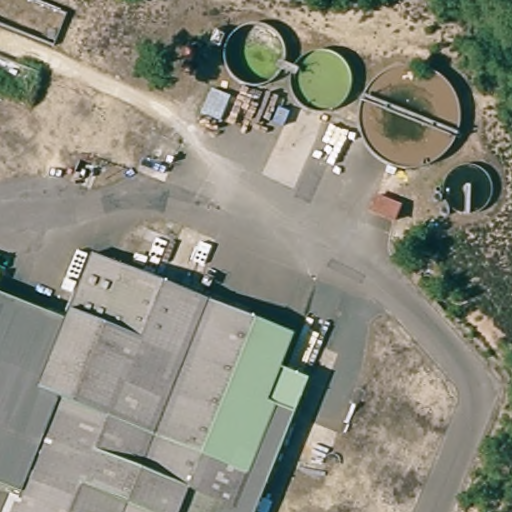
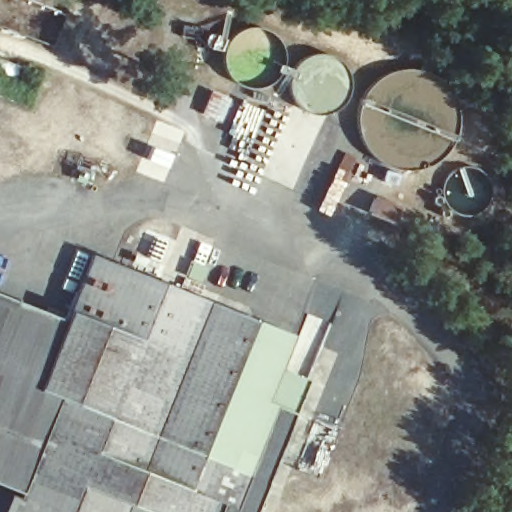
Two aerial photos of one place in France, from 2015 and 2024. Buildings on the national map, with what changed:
unchanged [(221,118),(203,110),(212,87),(230,95),(221,118)]
unchanged [(396,218),(385,214),(370,208),(376,194),(390,199),(401,204),(396,218)]
unchanged [(8,490),(47,394),(35,389),(61,321),(89,255),(290,336),(277,369),(305,380),(257,498),(268,503),(265,512),(258,512),(252,510),(252,512),(13,512),(20,495),(8,490)]
unchanged [(61,321),(35,389),(47,394),(8,490),(0,487),(0,297),(40,313),(61,321)]
unchanged [(0,512),(0,510),(8,490),(20,495),(13,512),(0,512)]

